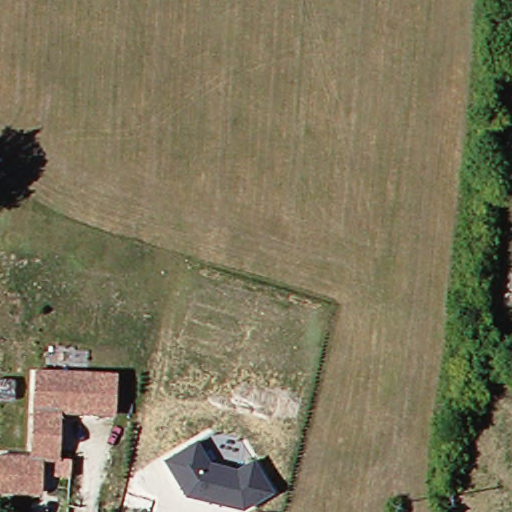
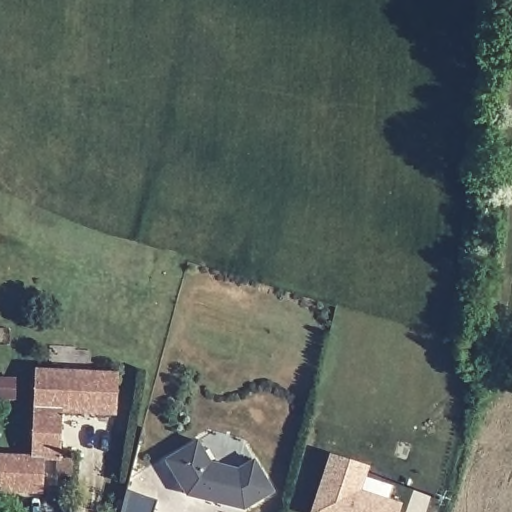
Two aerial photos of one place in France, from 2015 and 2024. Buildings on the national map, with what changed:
unchanged [(119,371),(118,411),(64,411),(63,459),(47,458),(46,492),(0,492),(0,466),(1,457),(37,457),(38,370),(119,371)]
unchanged [(166,458),(197,439),(211,461),(238,468),(255,459),(273,490),(244,507),(187,492),(166,458)]
new [(402,502),(399,512),(312,512),(332,454),(371,467),(363,490),(402,502)]
new [(123,512),(128,493),(156,501),(153,512),(123,512)]

